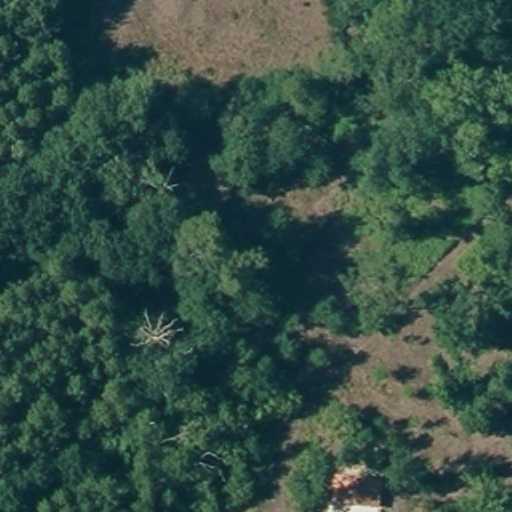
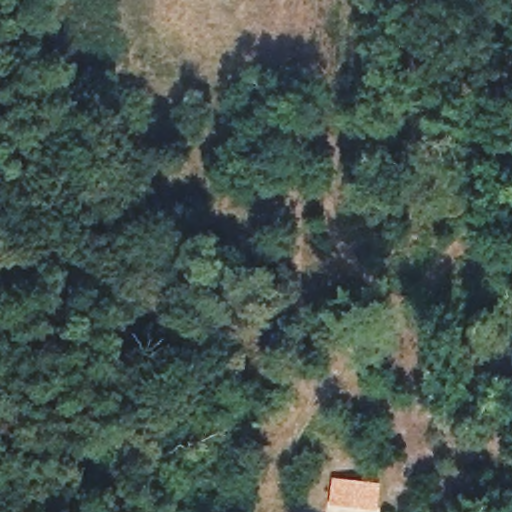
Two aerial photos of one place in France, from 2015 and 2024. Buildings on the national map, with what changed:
new [(383,484),(380,512),(330,506),(334,478),(383,484)]

